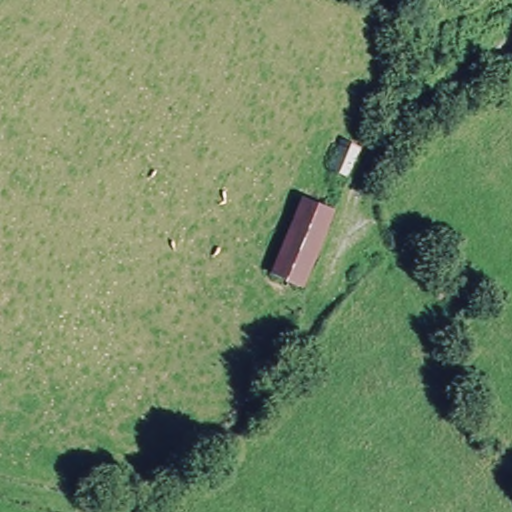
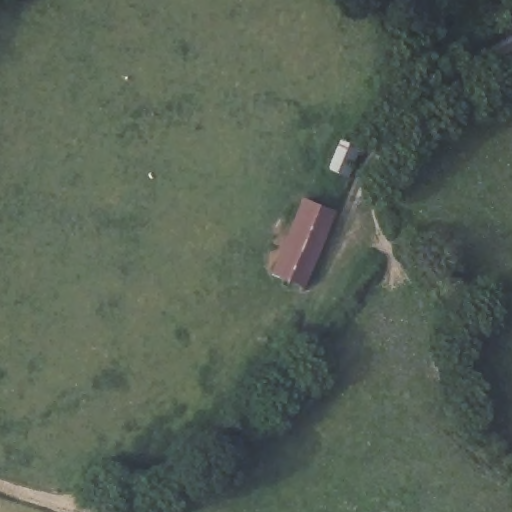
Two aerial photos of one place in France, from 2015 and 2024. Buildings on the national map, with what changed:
unchanged [(370,146),(353,179),(334,169),(350,139),(370,146)]
unchanged [(305,195),(341,210),(312,291),(278,276),(305,195)]

